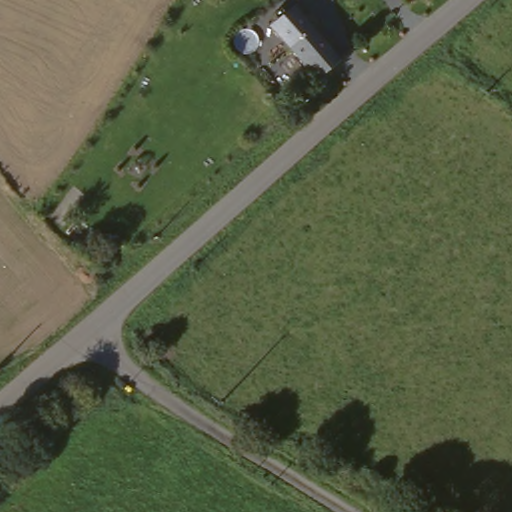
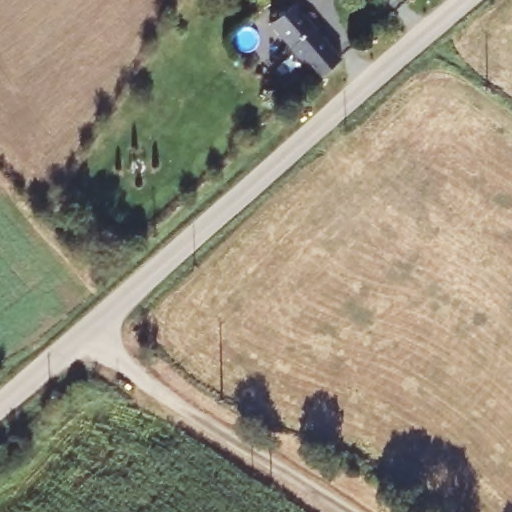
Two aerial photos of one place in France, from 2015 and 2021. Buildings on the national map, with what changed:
unchanged [(271,24),(276,20),(297,5),(339,66),(317,85),(271,24)]

